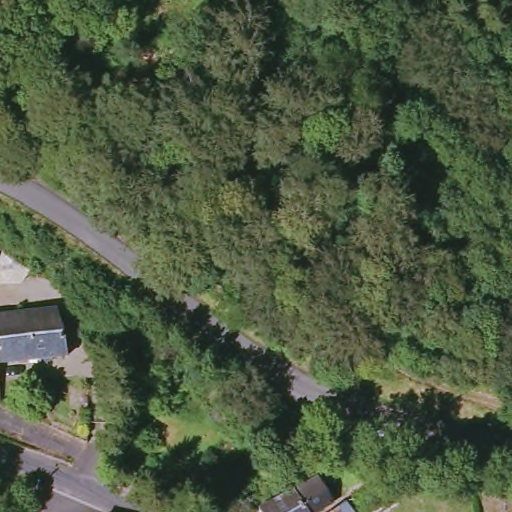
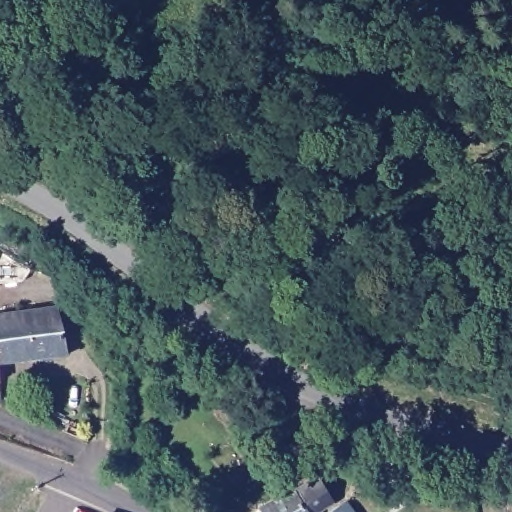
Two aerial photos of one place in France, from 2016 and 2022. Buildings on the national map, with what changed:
unchanged [(0,320),(55,313),(67,361),(0,367),(0,320)]
unchanged [(332,510),(328,512),(268,512),(280,505),(317,485),(332,510)]
unchanged [(350,506),(354,512),(341,512),(350,506)]

